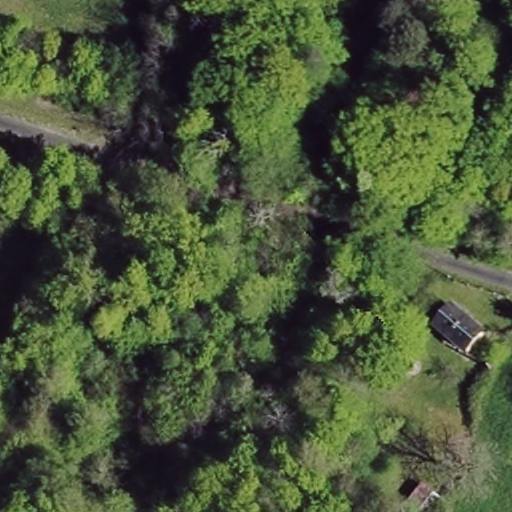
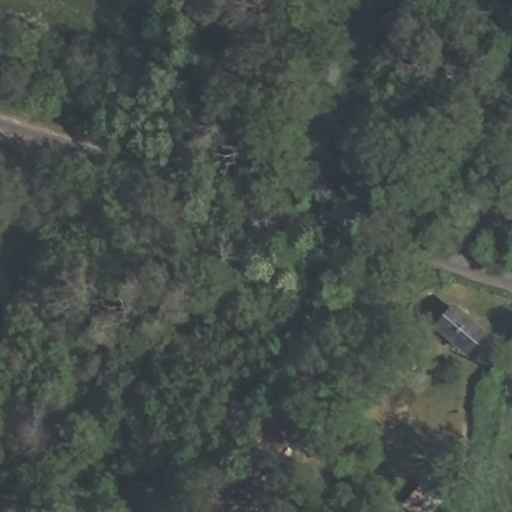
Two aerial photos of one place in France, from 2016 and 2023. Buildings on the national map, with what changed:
unchanged [(433,329),(452,303),(486,332),(466,358),(433,329)]
unchanged [(440,496),(425,512),(412,512),(402,504),(422,481),(440,496)]

